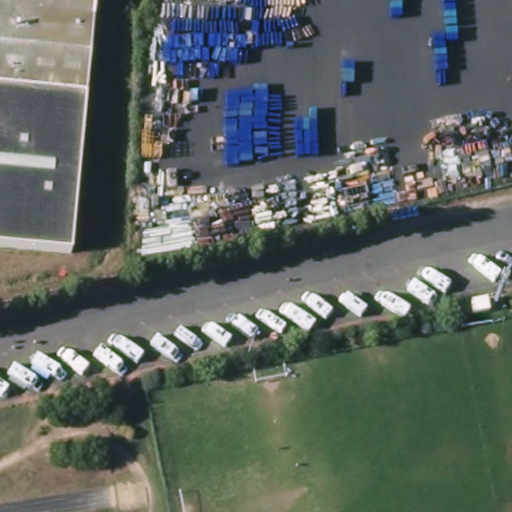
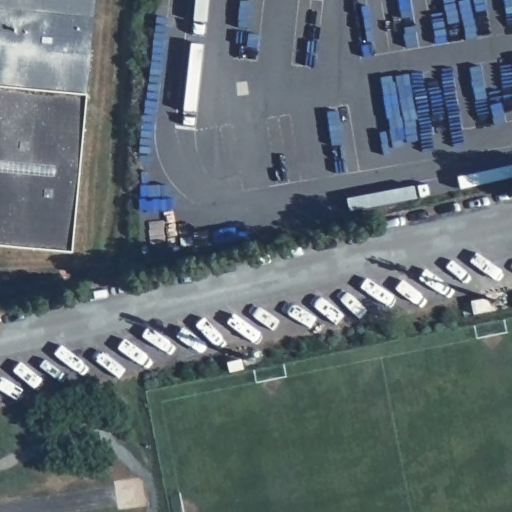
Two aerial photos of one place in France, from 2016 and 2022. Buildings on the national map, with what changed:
unchanged [(75,3),(94,6),(85,96),(85,97),(68,258),(0,251),(0,0),(60,0),(75,3)]
unchanged [(94,6),(75,3),(60,0),(95,0),(94,6)]
unchanged [(512,309),(512,310),(509,297),(512,297),(512,309)]

